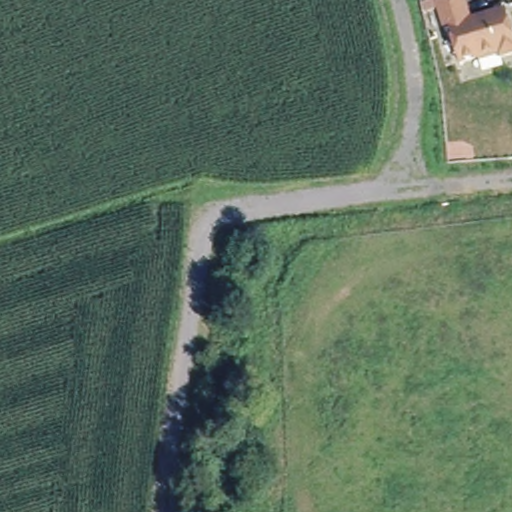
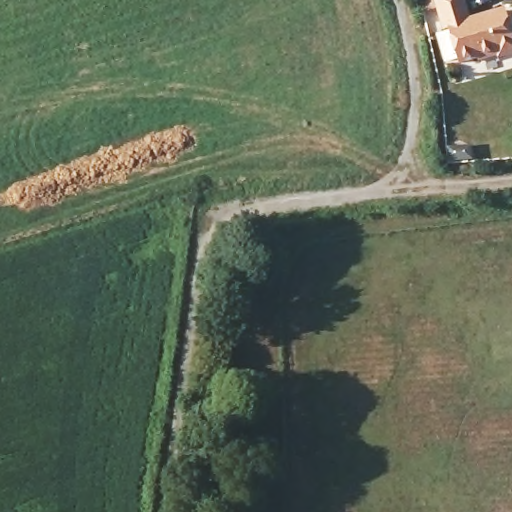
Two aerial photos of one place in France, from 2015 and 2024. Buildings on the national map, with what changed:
unchanged [(425,4),(439,0),(469,0),(476,20),(508,11),(512,23),(512,55),(503,58),(502,55),(482,61),(480,57),(462,62),(452,30),(448,31),(442,14),(428,17),(425,4)]

